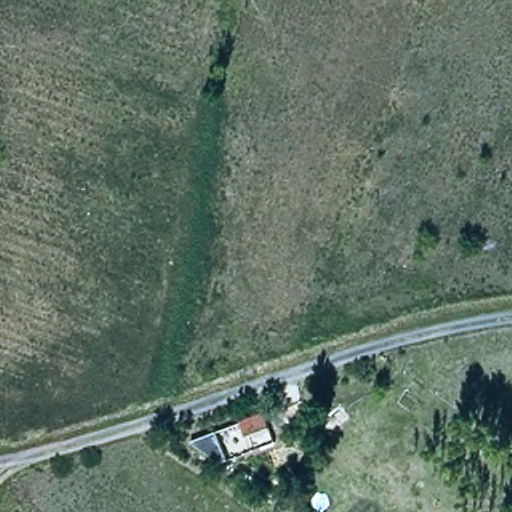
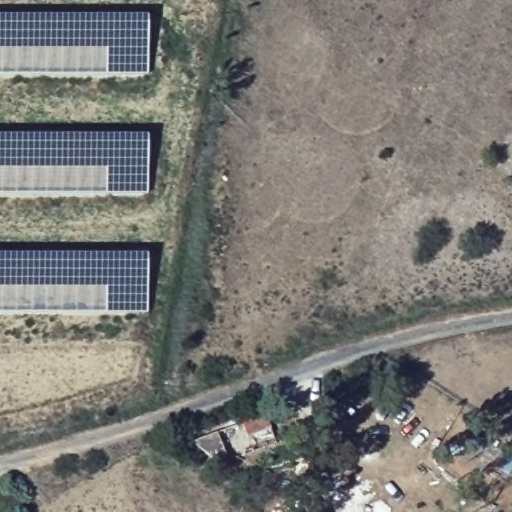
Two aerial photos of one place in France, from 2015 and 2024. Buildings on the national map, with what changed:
new [(149,14),(149,75),(111,76),(59,75),(0,74),(0,14),(149,14)]
new [(149,133),(148,195),(0,194),(0,133),(149,133)]
new [(149,252),(149,313),(97,315),(0,313),(0,253),(149,252)]
unchanged [(264,412),(269,425),(243,435),(239,417),(264,412)]
unchanged [(216,428),(226,460),(188,440),(216,428)]

